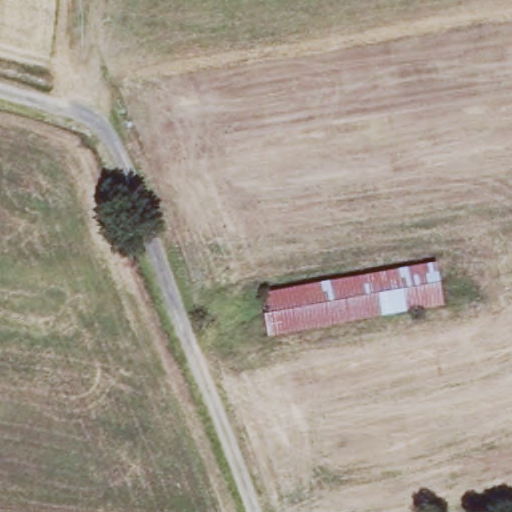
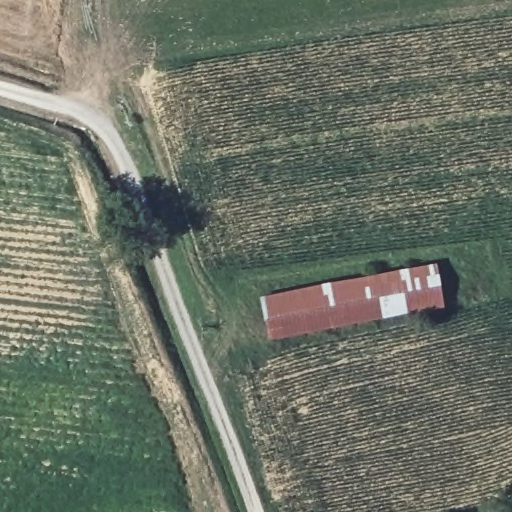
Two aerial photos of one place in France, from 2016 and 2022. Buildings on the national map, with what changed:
unchanged [(437,257),(445,299),(389,308),(268,329),(262,287),(437,257)]

